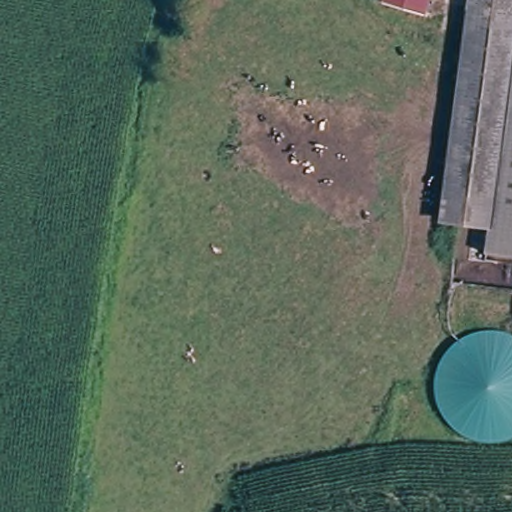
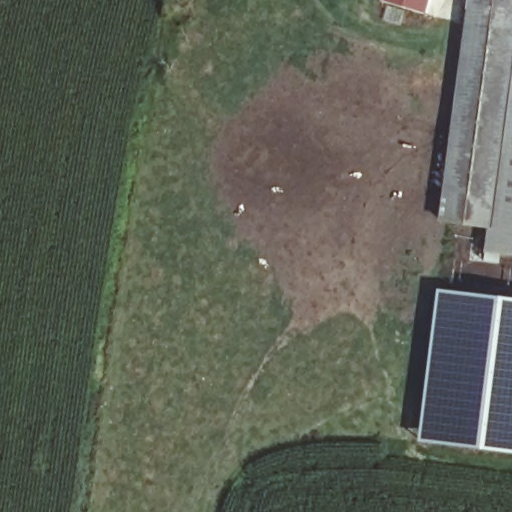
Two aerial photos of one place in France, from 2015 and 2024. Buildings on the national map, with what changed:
new [(386,0),(433,0),(428,15),(385,1),(386,0)]
unchanged [(446,227),(477,0),(512,0),(512,112),(496,232),(446,227)]
unchanged [(496,232),(512,112),(512,257),(492,254),(496,232)]
new [(512,297),(512,452),(420,441),(437,288),(512,297)]

